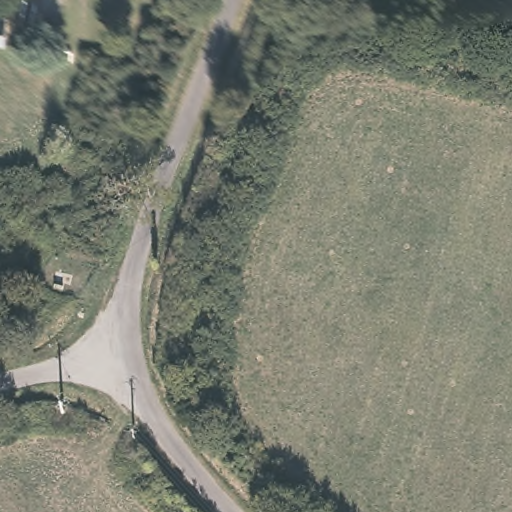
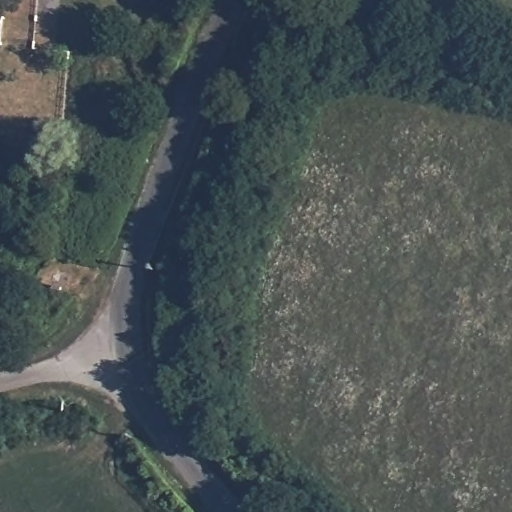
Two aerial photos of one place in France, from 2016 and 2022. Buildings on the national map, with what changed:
unchanged [(0,18),(5,18),(2,44),(0,44),(0,18)]

